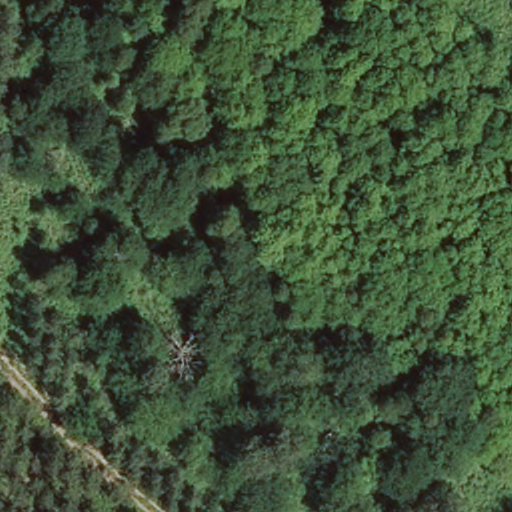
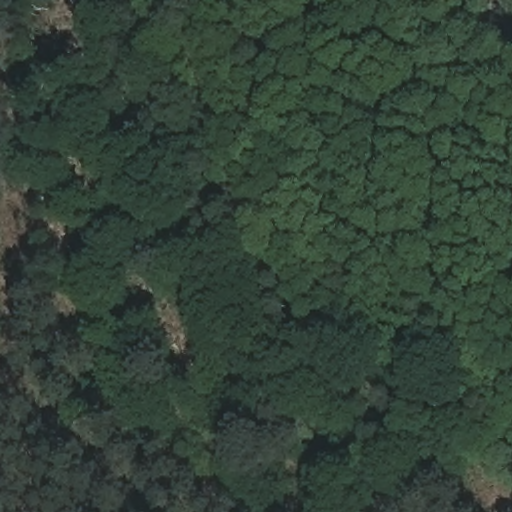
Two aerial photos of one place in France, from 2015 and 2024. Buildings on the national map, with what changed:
[]

